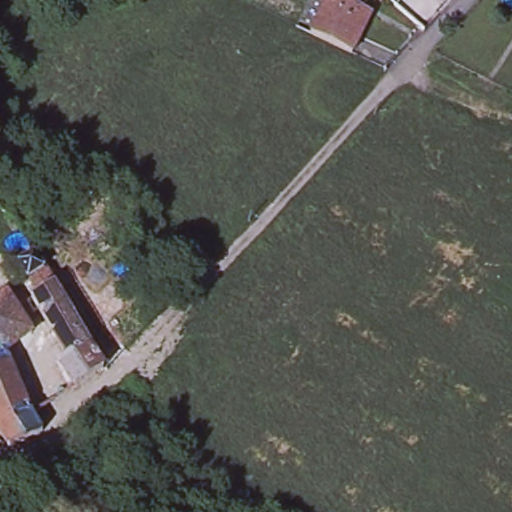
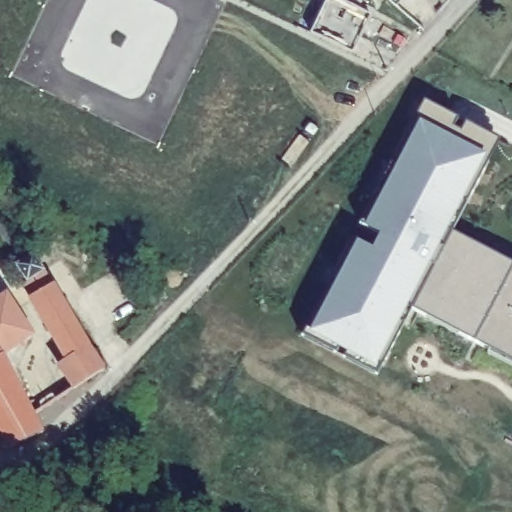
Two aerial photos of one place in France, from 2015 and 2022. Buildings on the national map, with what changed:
unchanged [(341,0),(363,0),(362,2),(374,7),(371,14),(353,53),(311,33),(326,0),(340,0),(341,0)]
new [(485,352),(487,347),(409,308),(376,375),(301,334),(352,236),(356,240),(371,248),(378,235),(363,227),(359,224),(423,100),(500,137),(452,232),(512,264),(512,366),(485,352)]
unchanged [(60,363),(68,358),(33,300),(18,309),(33,331),(16,342),(3,356),(0,357),(0,297),(7,292),(26,279),(16,264),(19,263),(13,253),(28,244),(34,254),(53,284),(104,369),(76,387),(60,363)]
unchanged [(9,448),(0,435),(0,357),(3,356),(33,415),(42,432),(9,448)]

